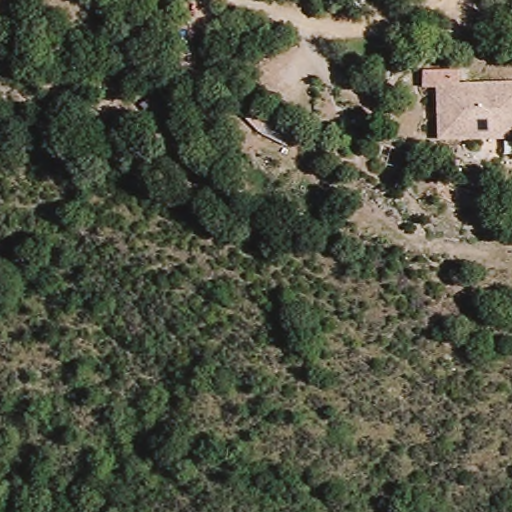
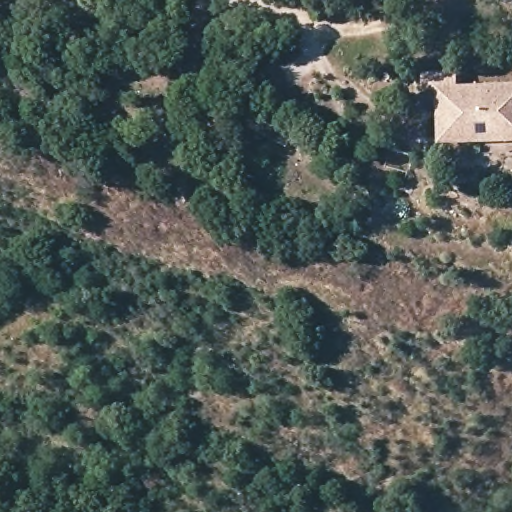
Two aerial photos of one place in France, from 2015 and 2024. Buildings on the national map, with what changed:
unchanged [(420,100),(418,76),(459,75),(460,88),(512,86),(512,146),(435,148),(435,99),(420,100)]

